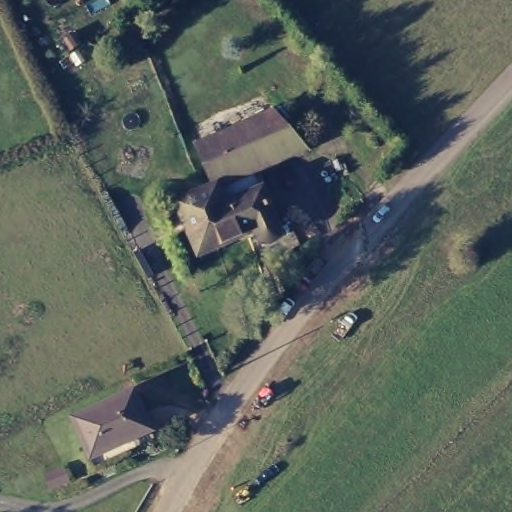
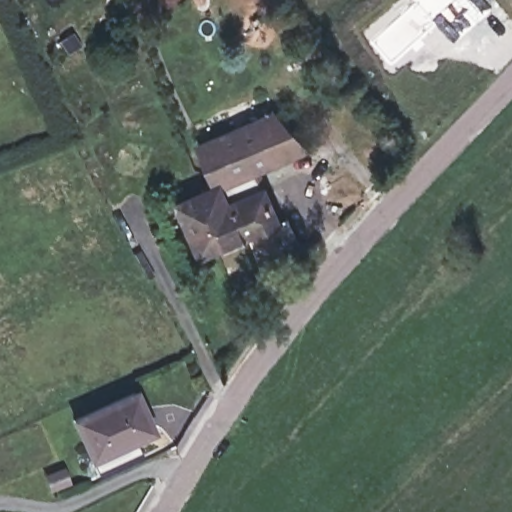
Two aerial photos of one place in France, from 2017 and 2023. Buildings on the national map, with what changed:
unchanged [(302,149),(252,170),(275,224),(195,256),(171,198),(206,182),(185,135),(202,127),(200,119),(226,109),(230,117),(277,97),(302,149)]
unchanged [(140,396),(158,434),(98,463),(80,424),(140,396)]

